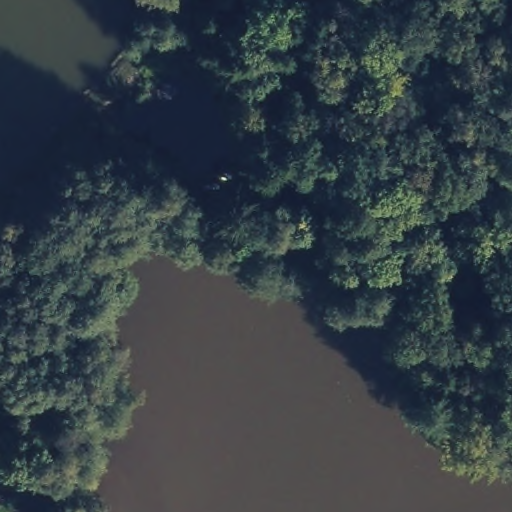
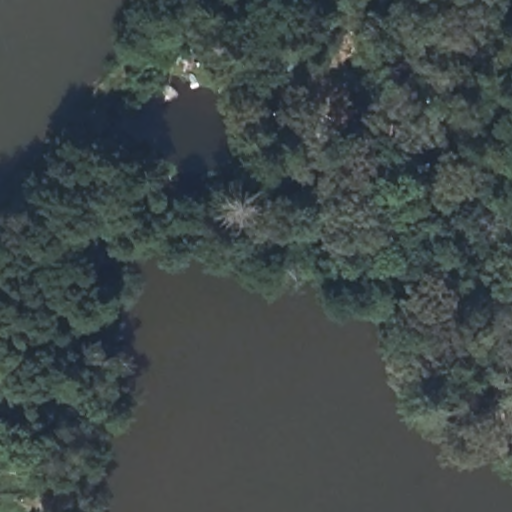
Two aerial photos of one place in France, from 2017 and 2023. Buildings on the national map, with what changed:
unchanged [(191,39),(195,61),(175,67),(171,47),(191,39)]

